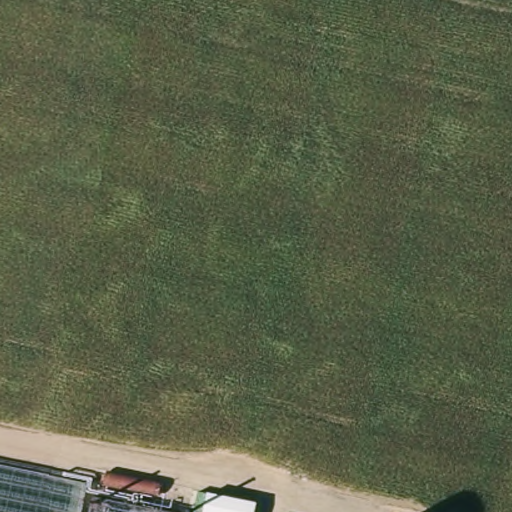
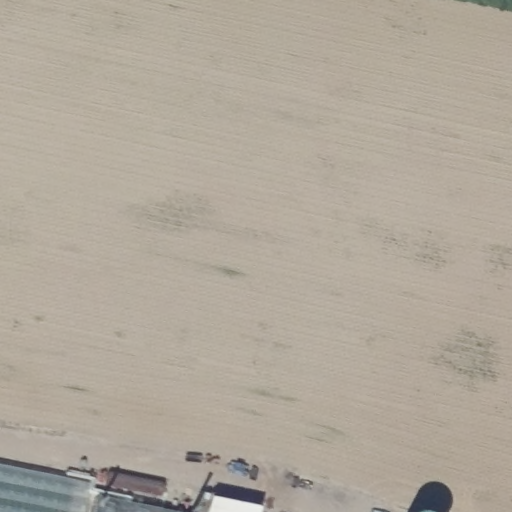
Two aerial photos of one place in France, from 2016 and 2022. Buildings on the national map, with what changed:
unchanged [(83,512),(0,512),(0,470),(88,488),(83,512)]
unchanged [(139,509),(139,512),(91,512),(94,493),(141,502),(139,509)]
unchanged [(141,502),(187,512),(139,512),(139,509),(141,502)]

